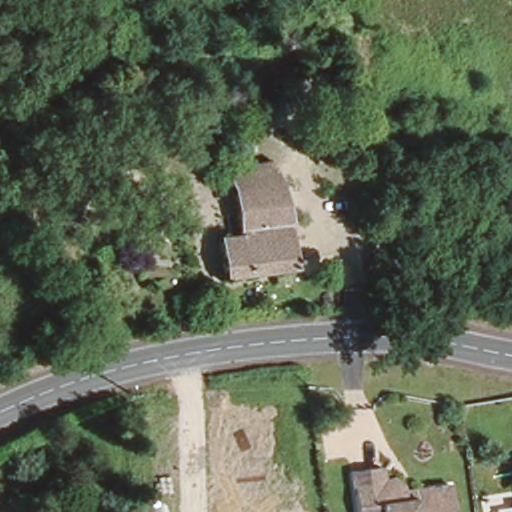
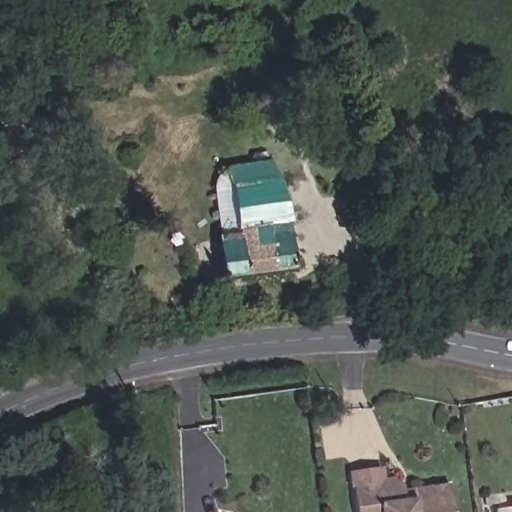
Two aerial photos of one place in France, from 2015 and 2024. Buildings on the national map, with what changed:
unchanged [(221,234),(240,230),(225,143),(274,139),(277,147),(291,268),(223,275),(221,234)]
unchanged [(370,453),(373,467),(385,468),(394,476),(395,487),(442,480),(447,512),(352,512),(343,458),(370,453)]

